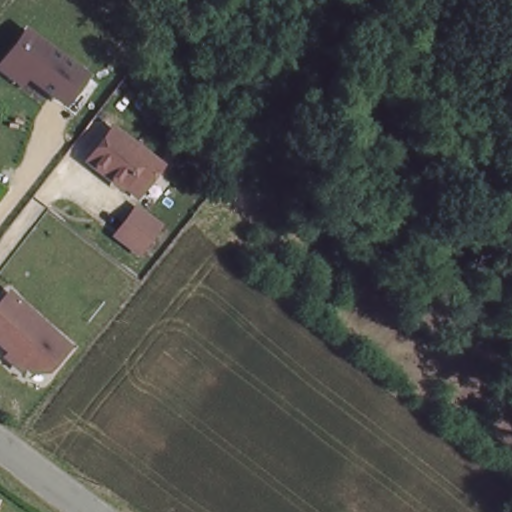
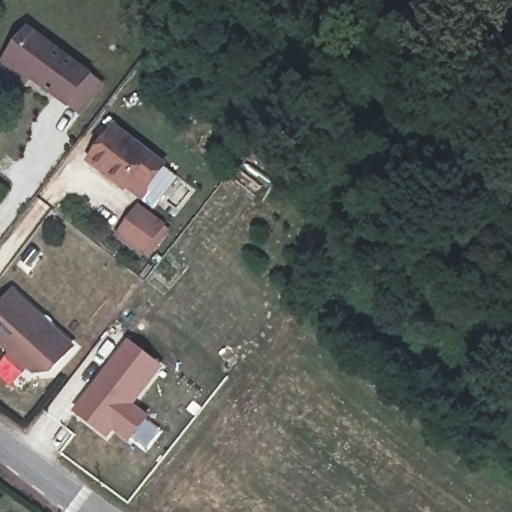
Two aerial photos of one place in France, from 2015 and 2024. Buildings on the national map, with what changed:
unchanged [(97,69),(73,102),(35,77),(27,85),(3,68),(35,25),(97,69)]
unchanged [(138,136),(143,132),(175,157),(152,193),(137,187),(131,192),(90,160),(119,125),(138,136)]
unchanged [(171,226),(148,257),(122,234),(144,204),(171,226)]
unchanged [(80,341),(60,368),(56,386),(40,387),(38,371),(30,373),(10,357),(13,351),(0,338),(0,305),(18,287),(80,341)]
new [(129,345),(162,371),(132,408),(149,422),(131,443),(115,432),(109,441),(76,416),(129,345)]

